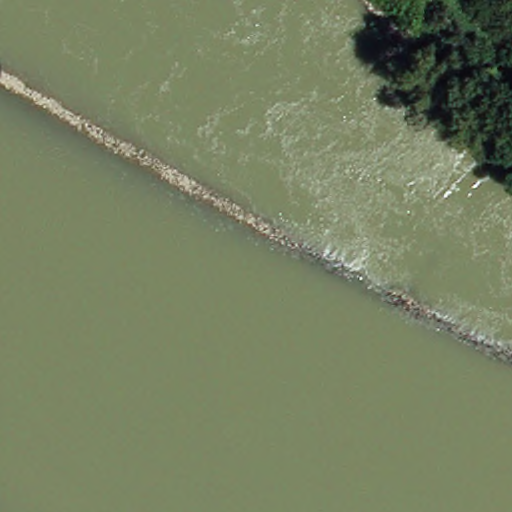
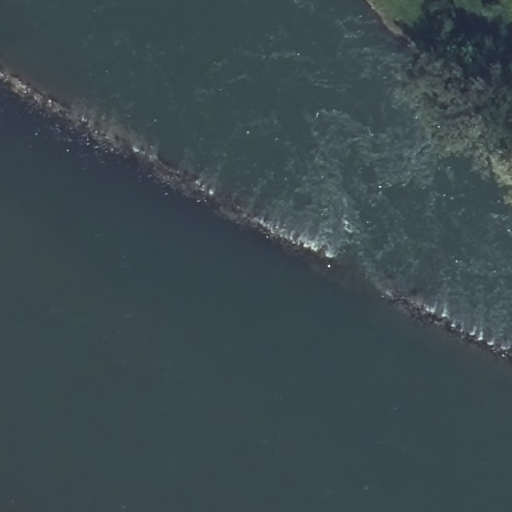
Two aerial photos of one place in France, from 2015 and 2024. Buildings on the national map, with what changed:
[]

